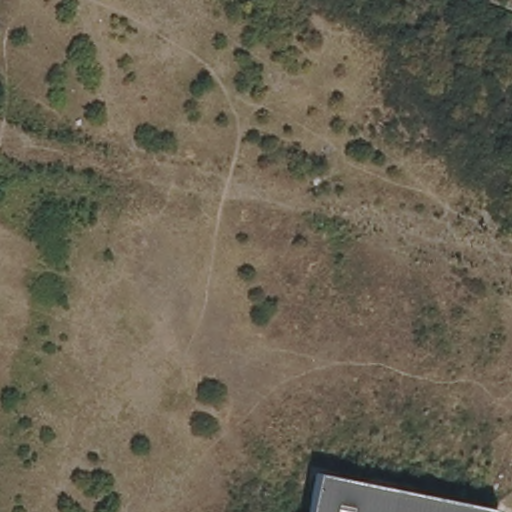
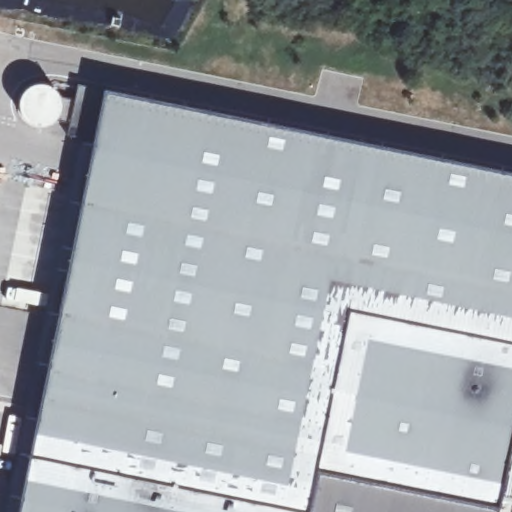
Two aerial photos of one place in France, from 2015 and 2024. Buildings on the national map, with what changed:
new [(57,91),(60,100),(60,104),(59,110),(55,118),(45,123),(42,124),(37,124),(32,122),(27,120),(21,113),(19,109),(18,100),(20,94),(23,90),(27,85),(32,83),(38,82),(42,82),(51,85),(57,91)]
new [(512,451),(500,512),(451,512),(315,485),(310,512),(23,512),(107,89),(512,170),(512,451)]
unchanged [(310,512),(315,485),(451,512),(310,512)]

